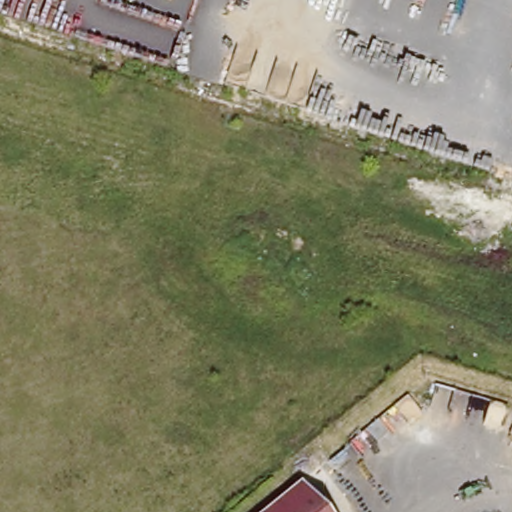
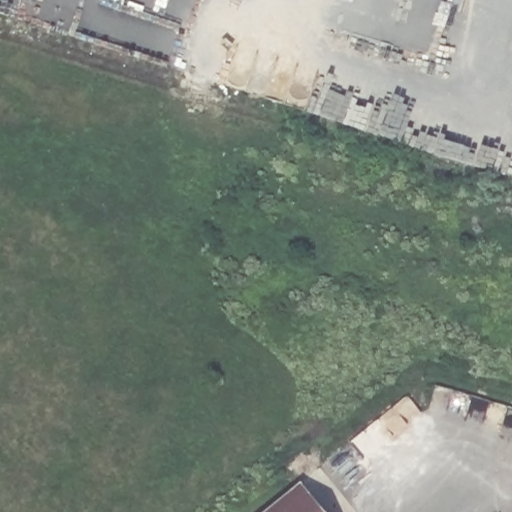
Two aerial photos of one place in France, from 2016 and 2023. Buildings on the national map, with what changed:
unchanged [(296,481),(321,512),(259,512),(296,481)]

